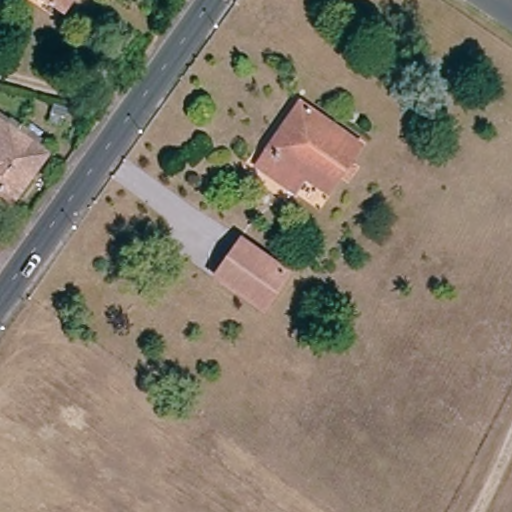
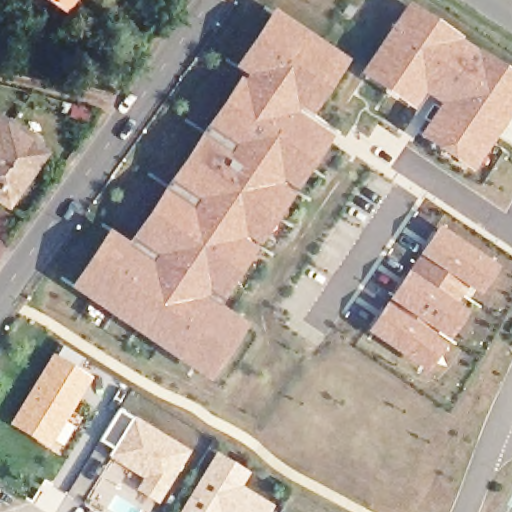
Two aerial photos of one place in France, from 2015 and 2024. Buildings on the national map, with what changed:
unchanged [(63,13),(46,0),(72,0),(63,13)]
new [(449,102),(423,86),(412,102),(366,72),(409,8),(512,75),(512,108),(472,166),(428,134),(449,102)]
new [(71,287),(109,229),(128,241),(206,126),(236,82),(256,94),(265,81),(243,65),(276,17),(331,53),(341,62),(309,112),(298,104),(291,114),(315,131),(326,137),(219,307),(247,326),(210,381),(71,287)]
demolished [(362,145),(327,195),(304,178),(294,192),(256,166),(266,151),(265,150),(299,101),(362,145)]
unchanged [(4,207),(0,204),(0,121),(44,154),(4,207)]
new [(438,224),(500,267),(478,298),(471,294),(469,290),(418,254),(438,224)]
demolished [(287,279),(262,316),(212,281),(238,245),(287,279)]
new [(418,254),(469,290),(460,303),(407,270),(418,254)]
new [(407,270),(460,303),(470,311),(447,341),(387,300),(407,270)]
new [(387,300),(447,341),(423,373),(365,331),(387,300)]
new [(51,352),(55,353),(56,352),(92,378),(66,421),(74,426),(60,447),(53,443),(49,449),(6,423),(51,352)]
new [(190,452),(159,501),(141,490),(148,477),(111,455),(115,449),(101,441),(121,410),(190,452)]
new [(252,473),(243,486),(275,506),(272,511),(274,512),(180,512),(217,452),(252,473)]

